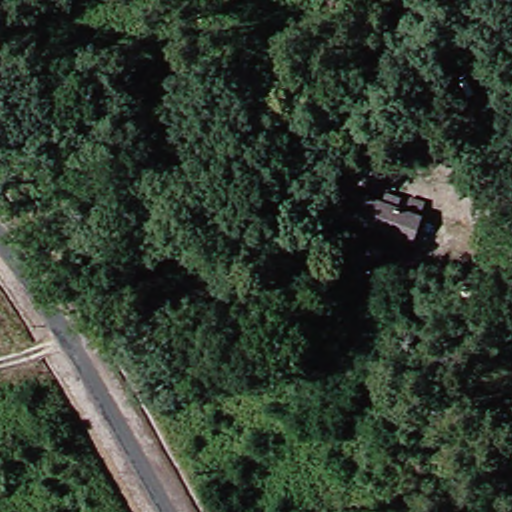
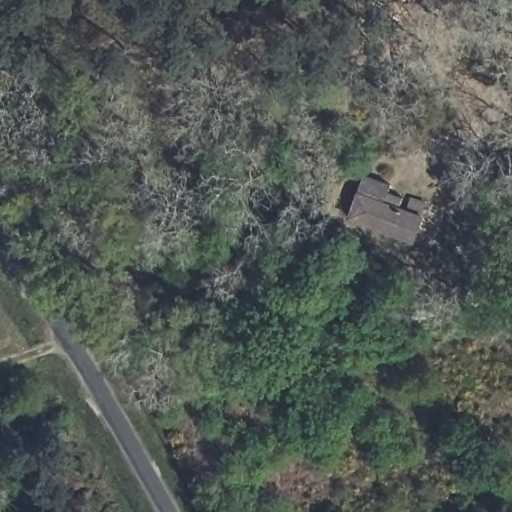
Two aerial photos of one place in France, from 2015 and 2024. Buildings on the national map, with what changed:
unchanged [(408,239),(352,217),(358,193),(412,216),(408,239)]

